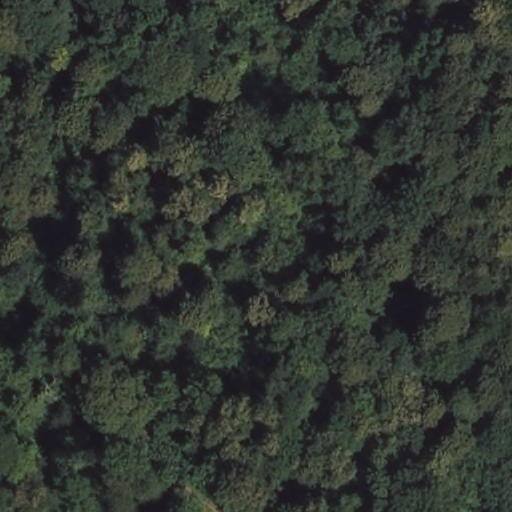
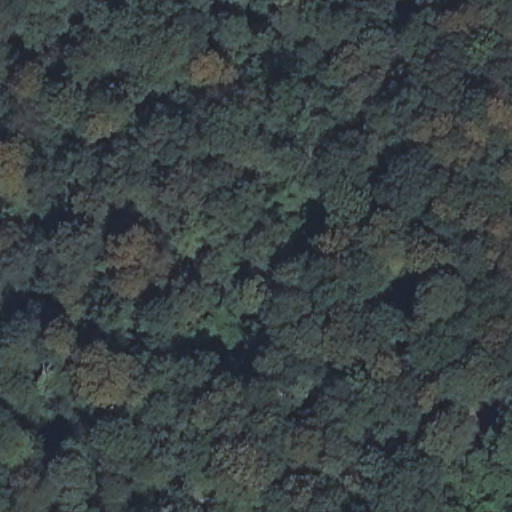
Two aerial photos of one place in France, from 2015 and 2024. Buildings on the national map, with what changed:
unchanged [(339,168),(337,165),(354,159),(366,193),(349,199),(339,168)]

